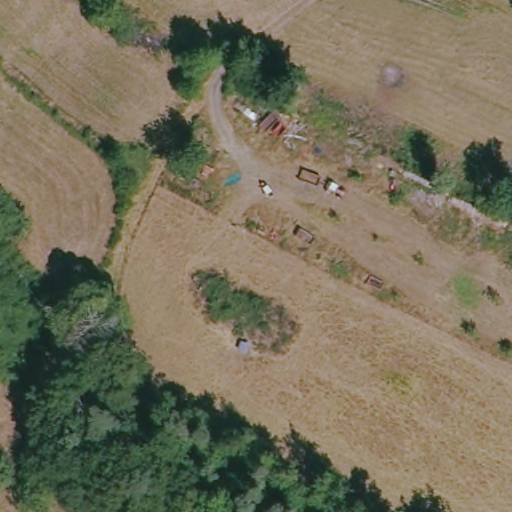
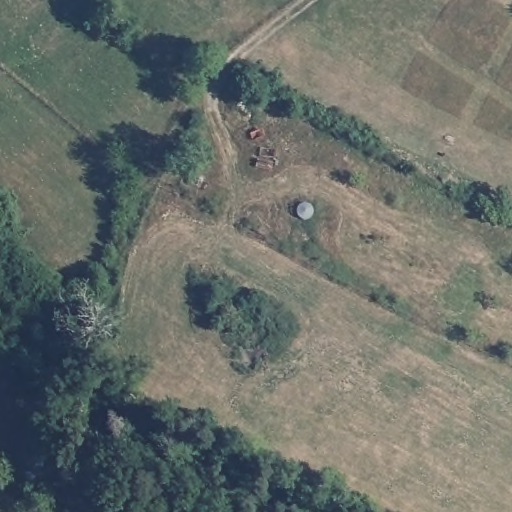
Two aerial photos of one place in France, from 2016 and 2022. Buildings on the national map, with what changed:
[]

